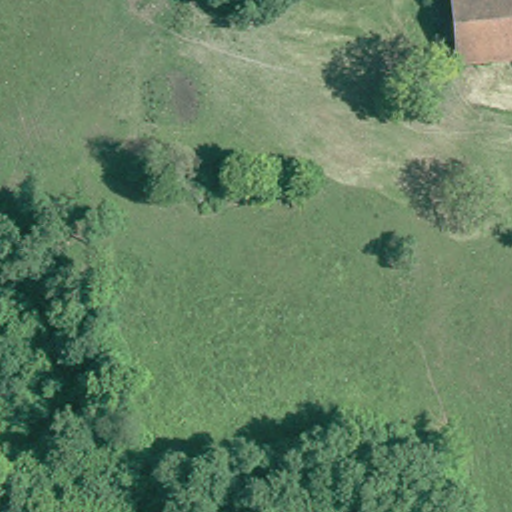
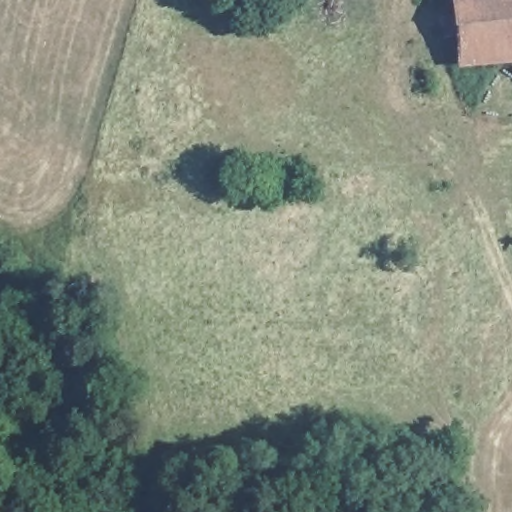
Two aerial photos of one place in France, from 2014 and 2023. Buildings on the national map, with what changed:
unchanged [(512,0),(512,55),(458,60),(453,0),(512,0)]

